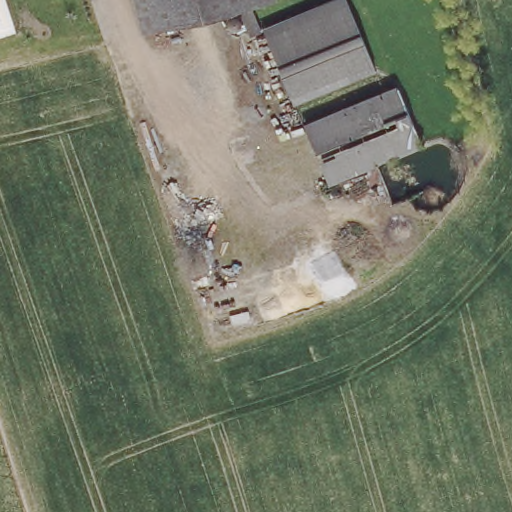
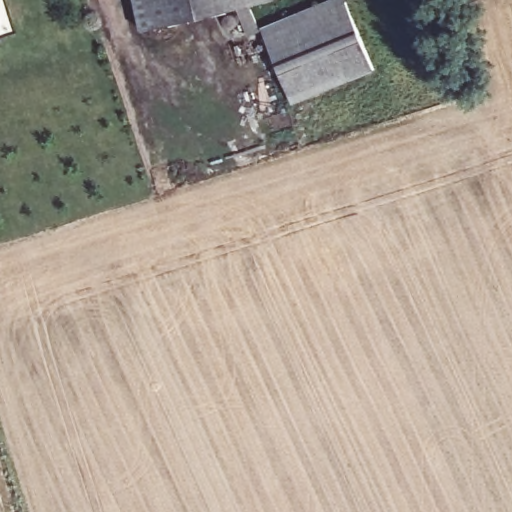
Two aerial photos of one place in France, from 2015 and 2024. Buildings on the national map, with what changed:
unchanged [(137,0),(268,0),(146,32),(137,0)]
unchanged [(349,0),(373,69),(293,97),(271,36),(268,29),(347,0),(349,0)]
demolished [(401,85),(421,147),(322,181),(304,130),(300,119),(401,85)]

